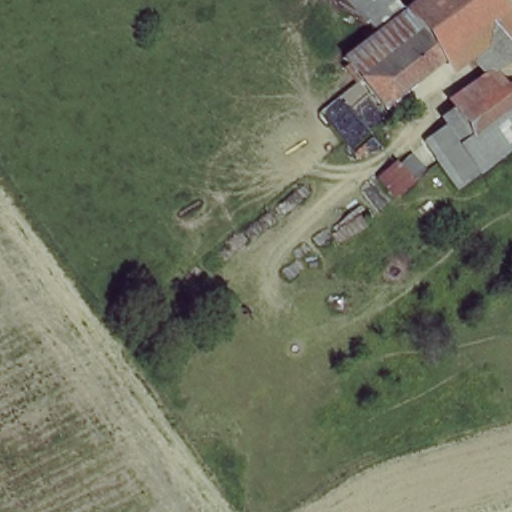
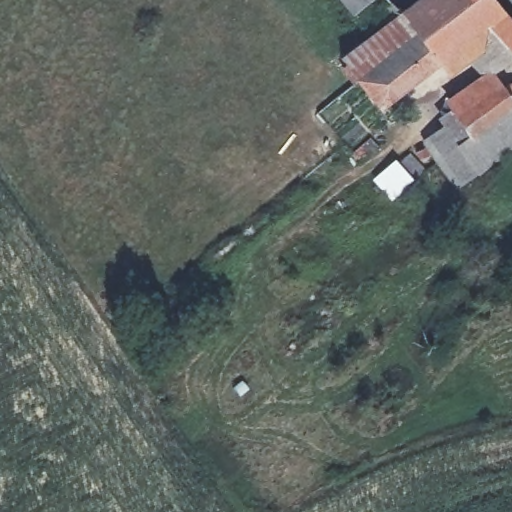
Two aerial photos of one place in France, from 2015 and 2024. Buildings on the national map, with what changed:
unchanged [(487,0),(505,18),(512,26),(512,55),(495,66),(473,42),(374,108),(334,62),(369,37),(404,11),(419,0),(487,0)]
unchanged [(369,37),(337,0),(394,0),(404,11),(369,37)]
unchanged [(492,88),(512,82),(512,147),(446,191),(420,150),(443,134),(440,122),(492,88)]
unchanged [(387,163),(401,181),(387,194),(370,176),(387,163)]

